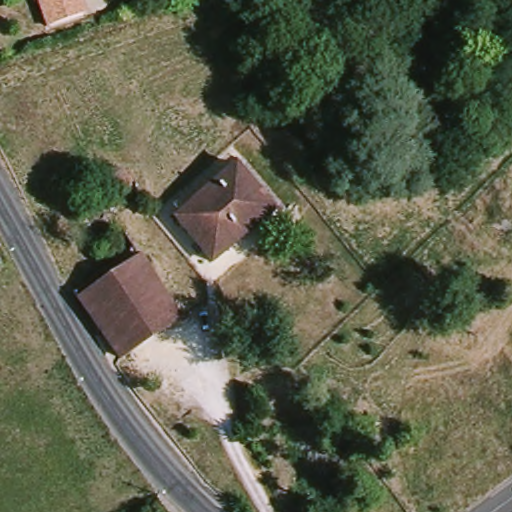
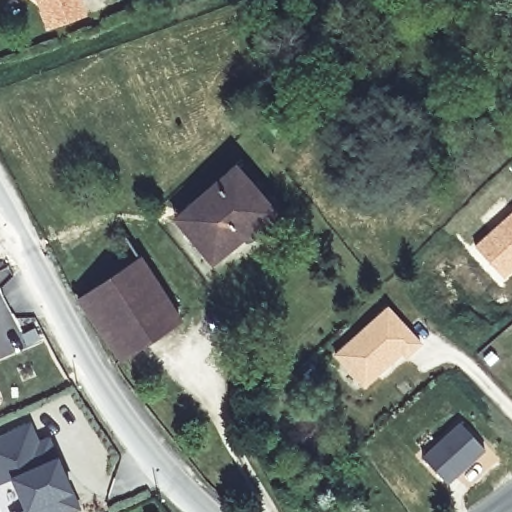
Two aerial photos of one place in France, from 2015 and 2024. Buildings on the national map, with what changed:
unchanged [(47,36),(37,8),(28,0),(76,0),(84,22),(47,36)]
unchanged [(175,217),(239,166),(275,211),(213,263),(175,217)]
new [(512,271),(503,279),(472,245),(512,208),(512,271)]
unchanged [(131,365),(146,387),(127,402),(110,377),(117,369),(75,302),(141,258),(181,323),(131,365)]
new [(402,352),(363,387),(333,355),(386,306),(421,343),(406,356),(402,352)]
new [(40,442),(50,438),(55,447),(59,457),(80,505),(64,512),(14,512),(28,506),(15,475),(0,481),(0,434),(31,421),(40,442)]
new [(456,422),(480,448),(441,482),(418,455),(456,422)]

